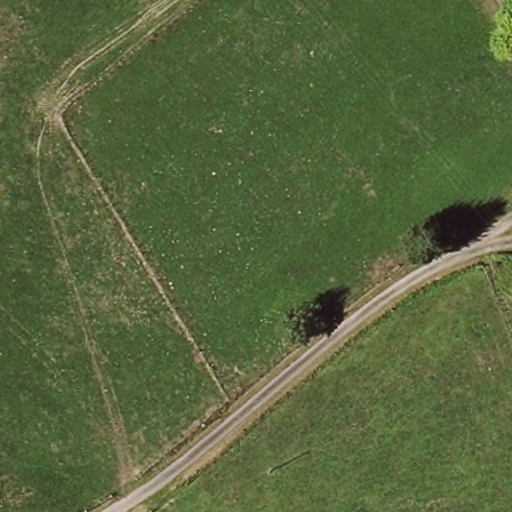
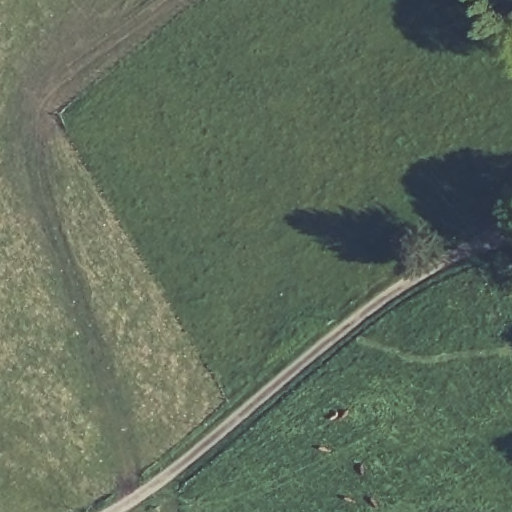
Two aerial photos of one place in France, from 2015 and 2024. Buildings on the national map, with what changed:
[]

